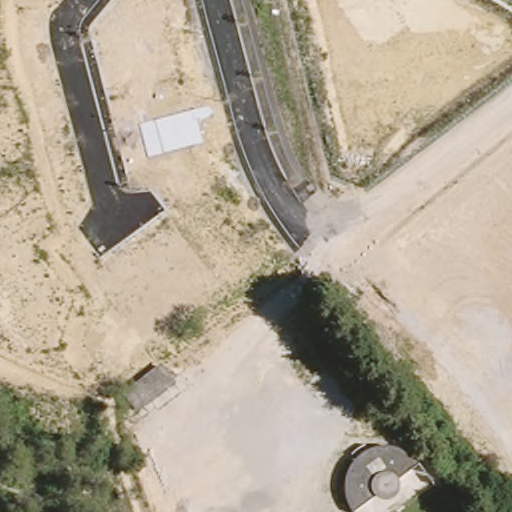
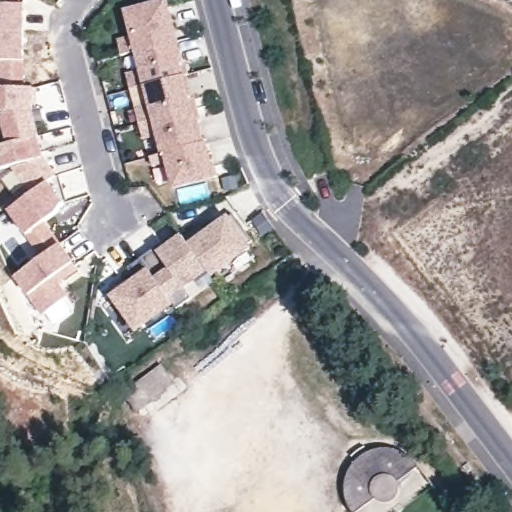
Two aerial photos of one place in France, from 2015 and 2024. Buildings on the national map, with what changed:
new [(12,0),(24,5),(23,31),(0,30),(0,0),(12,0)]
new [(128,91),(124,76),(140,71),(135,53),(119,57),(116,44),(131,39),(125,15),(167,4),(174,33),(177,32),(180,41),(177,42),(183,66),(186,66),(188,75),(186,76),(192,100),(195,100),(200,119),(197,120),(203,144),(164,154),(158,135),(143,140),(135,111),(151,106),(145,86),(128,91)]
new [(2,61),(0,61),(0,30),(23,31),(23,88),(2,88),(2,61)]
new [(2,88),(23,88),(33,88),(32,113),(37,137),(10,144),(2,113),(0,112),(0,88),(2,88)]
new [(37,137),(43,159),(56,177),(32,194),(13,166),(0,169),(0,146),(10,144),(37,137)]
new [(216,175),(210,177),(173,186),(167,161),(151,165),(149,158),(164,154),(203,144),(205,143),(211,166),(213,165),(216,175)]
new [(223,179),(235,177),(238,189),(226,191),(223,179)]
new [(32,194),(48,182),(66,206),(45,225),(60,245),(42,258),(25,234),(8,212),(32,194)]
new [(228,216),(253,250),(214,279),(208,271),(189,244),(228,216)]
new [(175,235),(178,240),(183,237),(208,271),(185,288),(192,299),(177,309),(173,304),(141,259),(156,248),(175,235)]
new [(77,270),(57,284),(67,297),(43,314),(16,276),(60,245),(77,270)]
new [(141,259),(173,304),(137,329),(114,296),(137,280),(128,268),(141,259)]
unchanged [(160,366),(173,382),(137,409),(125,393),(160,366)]
unchanged [(396,497),(393,502),(389,506),(383,508),(377,508),(373,507),(370,504),(359,512),(345,512),(342,504),(341,492),(342,482),(345,474),(350,466),(356,460),(364,455),(373,452),(383,451),(390,452),(399,455),(407,460),(412,465),(417,470),(395,486),(397,491),(396,497)]

